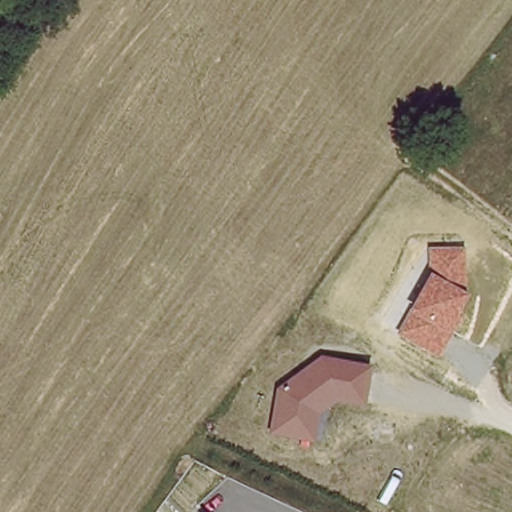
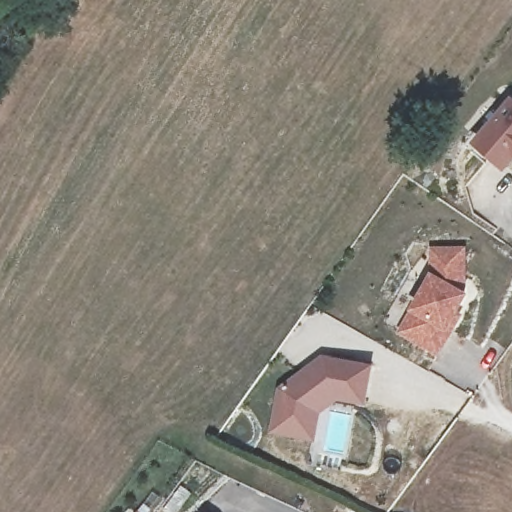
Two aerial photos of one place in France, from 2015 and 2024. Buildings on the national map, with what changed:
new [(512,95),(512,166),(507,172),(472,142),(512,94),(512,95)]
unchanged [(430,280),(428,247),(465,244),(470,299),(437,355),(399,333),(430,280)]
unchanged [(320,354),(374,362),(367,406),(340,400),(320,416),(317,441),(272,435),(279,387),(320,354)]

